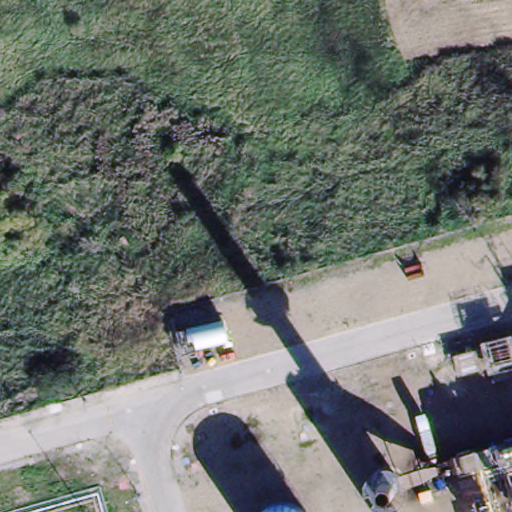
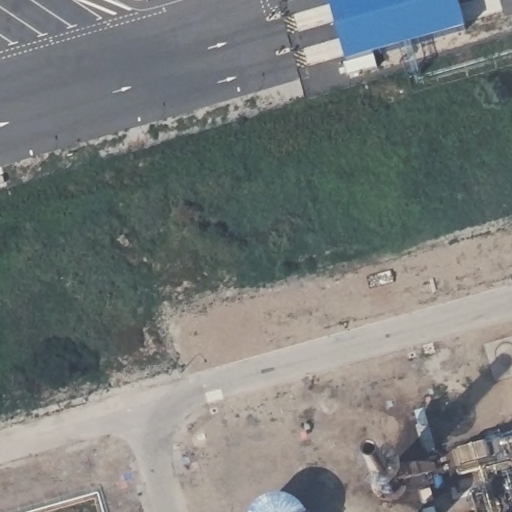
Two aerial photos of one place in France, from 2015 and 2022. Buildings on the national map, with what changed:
new [(331,0),(459,0),(468,32),(348,64),(331,0)]

